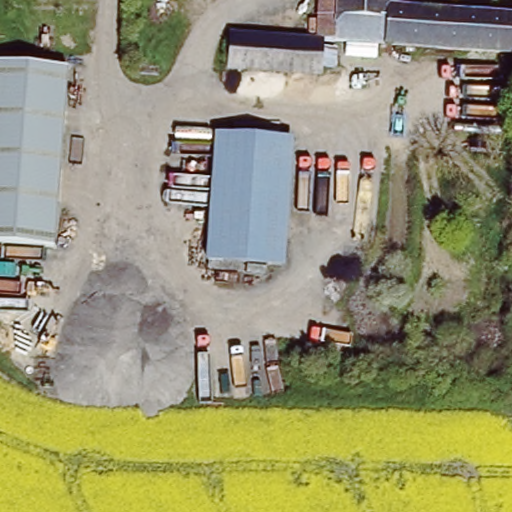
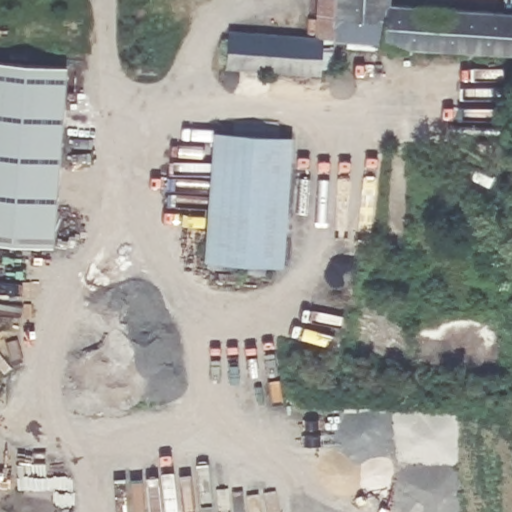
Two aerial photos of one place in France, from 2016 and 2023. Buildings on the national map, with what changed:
unchanged [(512,14),(512,56),(324,40),(319,39),(322,0),(392,0),(392,5),(512,14)]
unchanged [(324,40),(321,74),(228,69),(231,32),(319,39),(324,40)]
unchanged [(0,246),(0,64),(60,68),(48,249),(0,246)]
unchanged [(290,166),(215,161),(217,134),(292,140),(290,166)]
unchanged [(290,166),(283,264),(208,259),(215,161),(290,166)]

